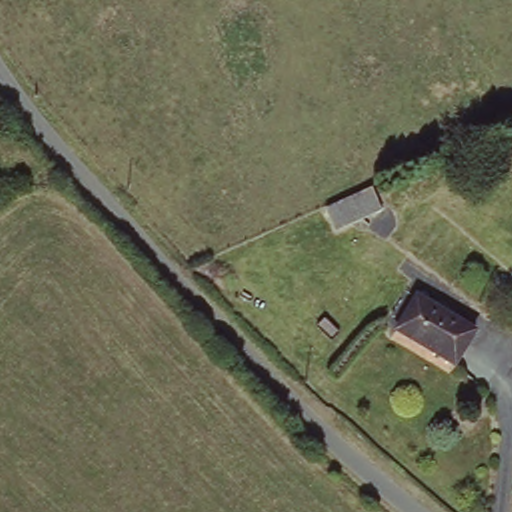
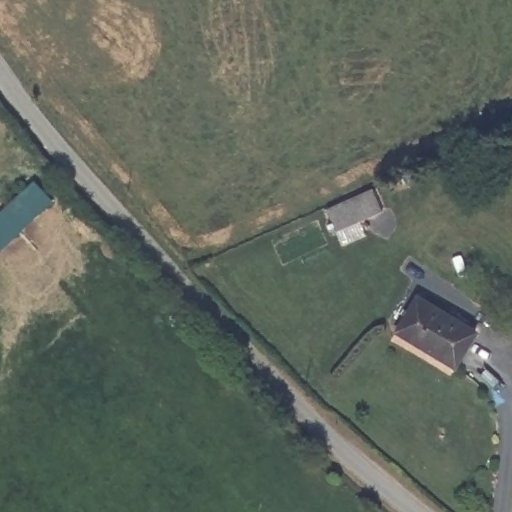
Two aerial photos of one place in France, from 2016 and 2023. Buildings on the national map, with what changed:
new [(53,203),(33,221),(29,215),(9,229),(16,240),(0,250),(0,212),(37,179),(53,203)]
unchanged [(371,189),(381,212),(335,232),(325,210),(371,189)]
unchanged [(415,298),(474,333),(454,368),(395,333),(415,298)]

